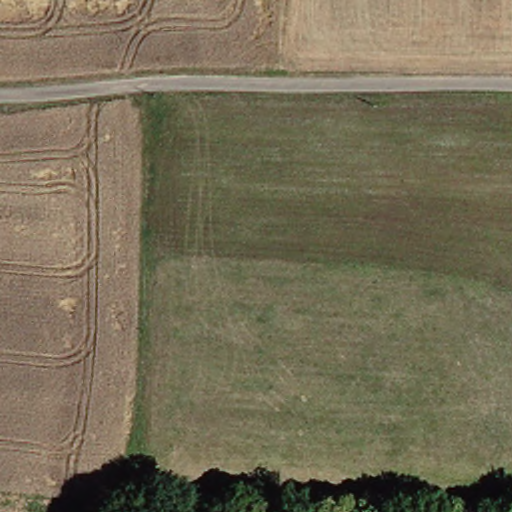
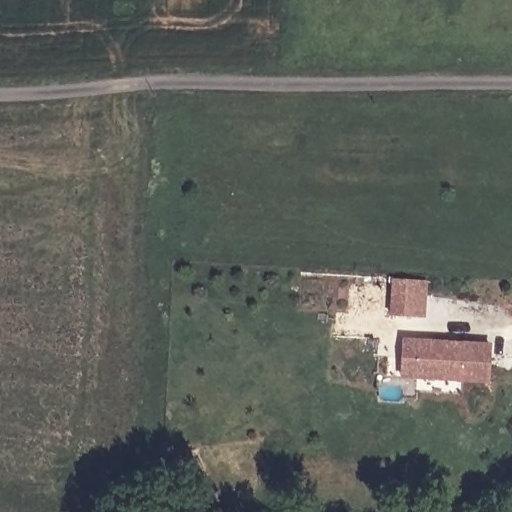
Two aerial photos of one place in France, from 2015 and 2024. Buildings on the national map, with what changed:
new [(390,318),(390,281),(422,281),(422,318),(390,318)]
new [(404,360),(404,342),(448,341),(462,341),(490,341),(490,377),(420,378),(404,378),(404,360)]

